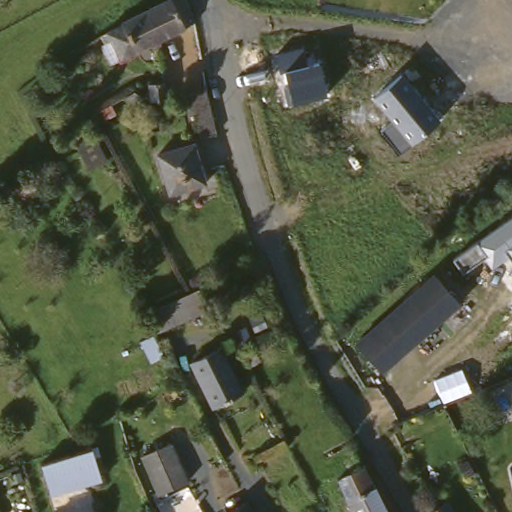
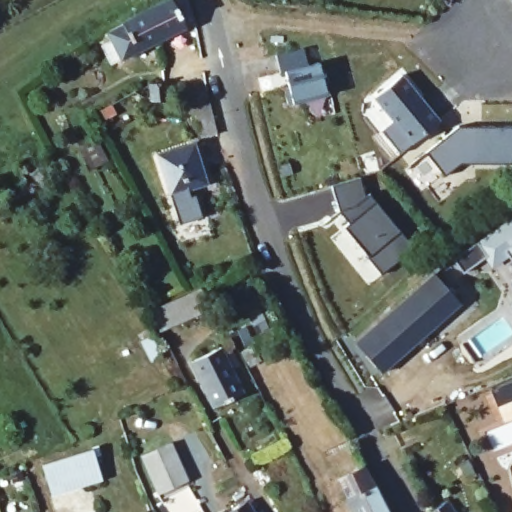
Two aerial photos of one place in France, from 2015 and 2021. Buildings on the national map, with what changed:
unchanged [(146,7),(150,4),(158,0),(188,0),(198,21),(165,40),(146,7)]
unchanged [(111,28),(142,9),(146,7),(165,40),(127,60),(115,39),(110,42),(104,32),(111,28)]
unchanged [(279,73),(275,54),(304,47),(308,65),(320,62),(328,96),(293,105),(285,70),(279,73)]
unchanged [(383,130),(394,122),(373,98),(403,74),(440,121),(401,152),(383,130)]
unchanged [(166,109),(161,88),(177,85),(182,107),(166,109)]
unchanged [(210,143),(204,115),(197,115),(195,108),(202,106),(216,104),(222,135),(224,140),(214,142),(210,143)]
new [(512,127),(512,158),(511,163),(460,164),(445,177),(427,153),(459,127),(512,127)]
unchanged [(176,187),(165,147),(199,138),(209,179),(176,187)]
new [(360,176),(365,197),(370,194),(411,246),(396,259),(397,261),(380,274),(343,227),(347,224),(338,211),(332,187),(360,176)]
unchanged [(492,268),(485,259),(463,275),(452,258),(512,217),(512,260),(510,257),(492,268)]
unchanged [(345,344),(425,277),(451,307),(370,374),(345,344)]
unchanged [(220,302),(168,326),(157,307),(210,282),(220,302)]
unchanged [(512,302),(512,306),(510,303),(512,302)]
unchanged [(226,403),(201,359),(230,343),(255,386),(226,403)]
unchanged [(204,493),(174,508),(146,451),(174,436),(204,493)]
unchanged [(60,493),(53,462),(102,447),(110,480),(60,493)]
unchanged [(346,477),(371,462),(380,479),(401,512),(368,512),(356,493),(346,477)]
unchanged [(265,512),(231,512),(230,511),(236,508),(254,497),(265,512)]
unchanged [(462,512),(451,512),(457,506),(462,512)]
unchanged [(184,512),(186,510),(187,512),(184,512)]

